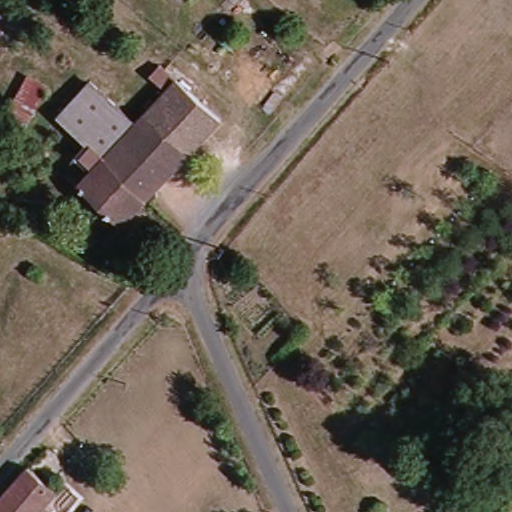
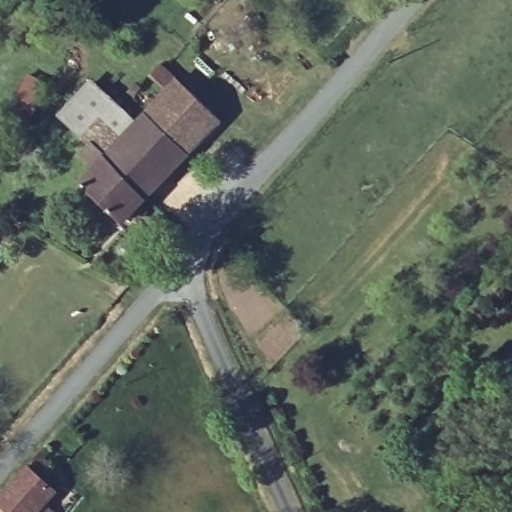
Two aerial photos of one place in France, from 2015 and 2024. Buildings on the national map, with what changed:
unchanged [(138,131),(170,99),(149,79),(162,65),(221,122),(122,226),(82,190),(105,166),(70,133),(57,122),(70,112),(92,90),(138,131)]
unchanged [(58,488),(37,510),(40,512),(0,512),(0,497),(30,464),(58,488)]

